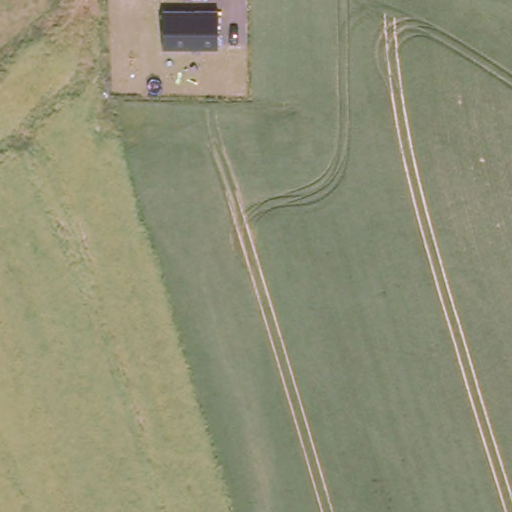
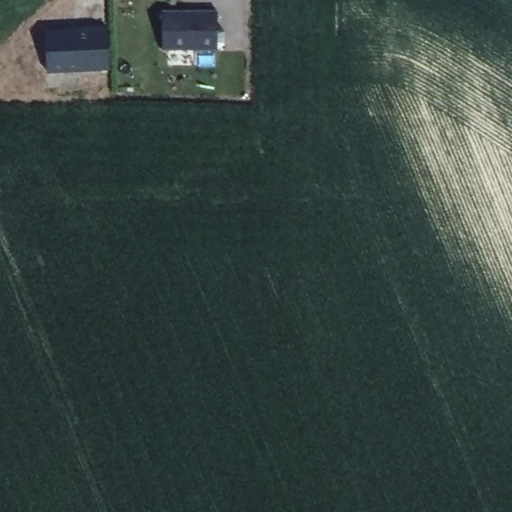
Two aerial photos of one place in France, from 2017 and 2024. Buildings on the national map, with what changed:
unchanged [(217,9),(218,47),(163,47),(162,10),(217,9)]
new [(108,26),(110,70),(48,72),(46,30),(108,26)]

